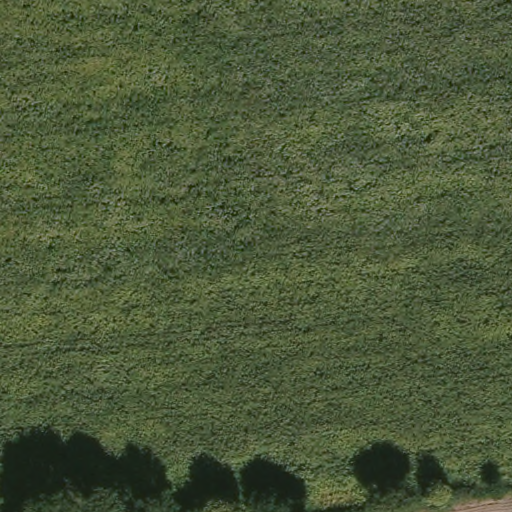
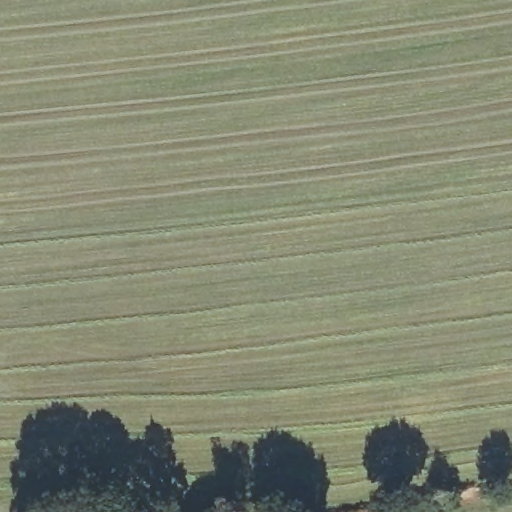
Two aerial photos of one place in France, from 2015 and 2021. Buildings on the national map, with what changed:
[]

